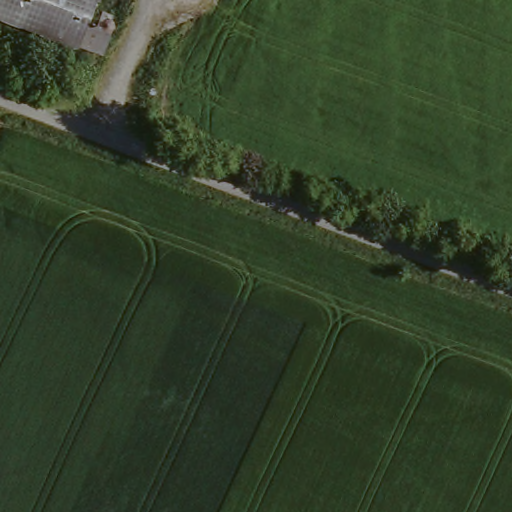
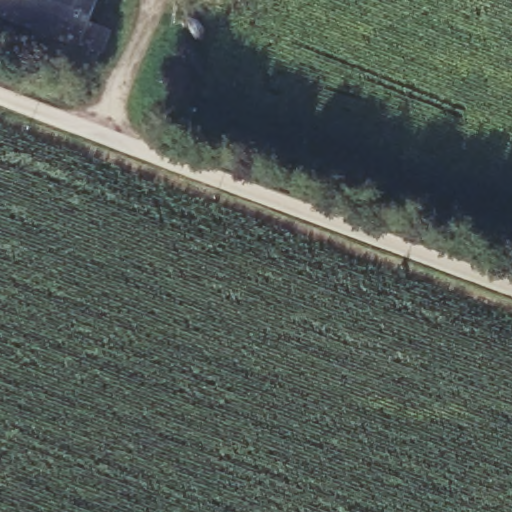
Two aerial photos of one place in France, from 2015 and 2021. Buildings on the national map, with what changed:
unchanged [(98,65),(89,61),(0,29),(0,0),(93,0),(82,30),(99,36),(107,40),(98,65)]

